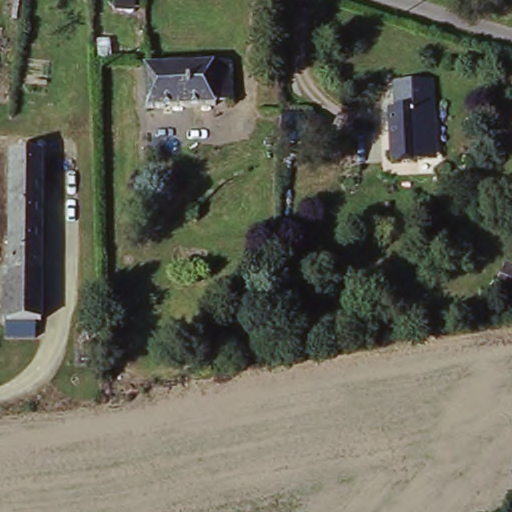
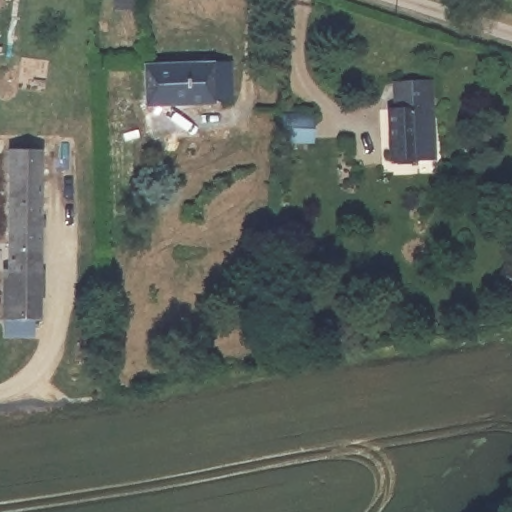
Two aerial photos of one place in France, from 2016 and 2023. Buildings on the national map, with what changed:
unchanged [(148,70),(231,69),(232,109),(149,111),(148,70)]
unchanged [(431,112),(431,161),(390,160),(390,112),(431,112)]
unchanged [(29,322),(0,322),(0,300),(1,277),(6,278),(7,152),(32,153),(29,322)]
unchanged [(504,261),(512,265),(512,296),(493,290),(504,261)]

